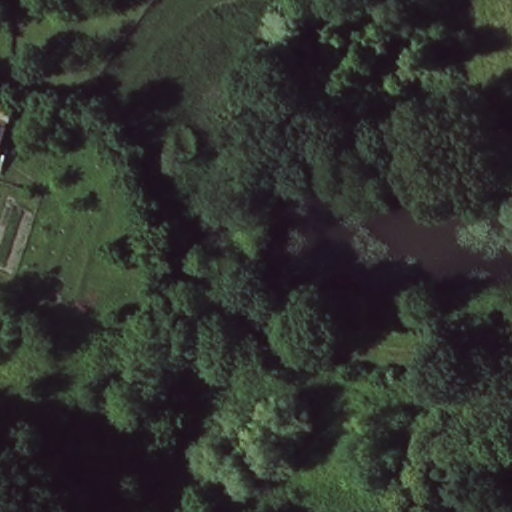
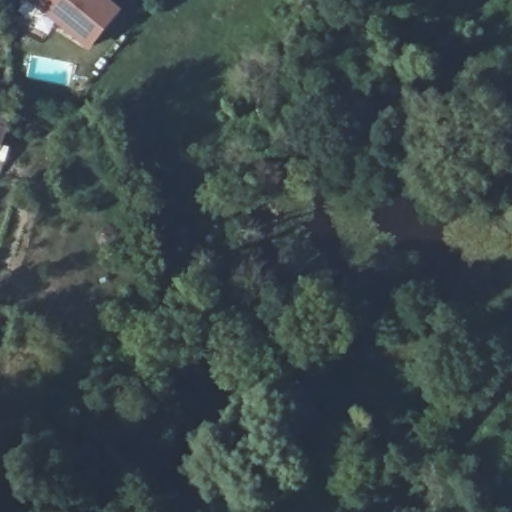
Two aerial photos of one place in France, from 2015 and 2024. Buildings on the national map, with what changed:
new [(88,51),(27,0),(111,0),(122,9),(88,51)]
new [(13,112),(0,156),(0,108),(13,112)]

